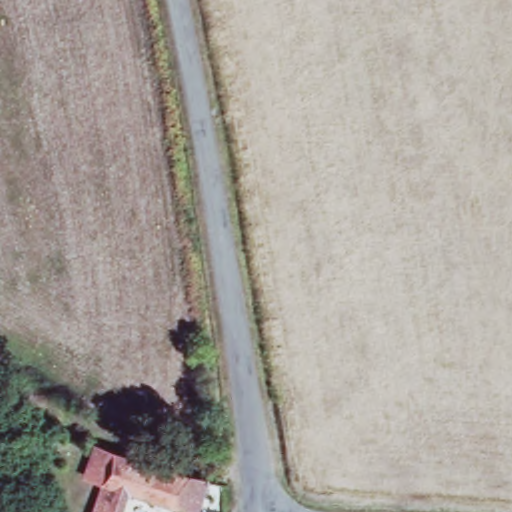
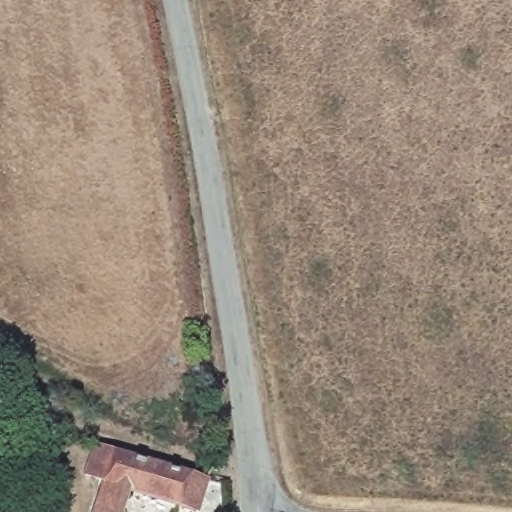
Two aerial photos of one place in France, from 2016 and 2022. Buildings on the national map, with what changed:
unchanged [(101,472),(79,469),(86,434),(201,465),(192,506),(127,487),(118,512),(87,512),(101,472)]

